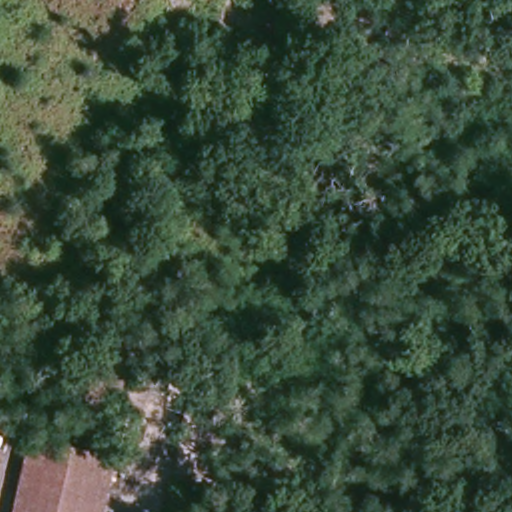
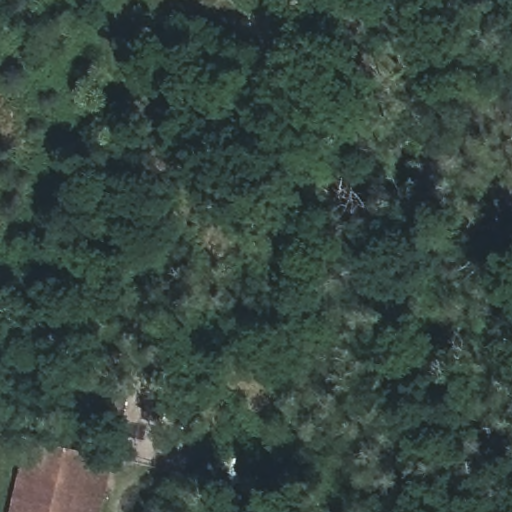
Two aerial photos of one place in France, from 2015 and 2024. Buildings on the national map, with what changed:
unchanged [(110,461),(99,512),(13,512),(29,441),(110,461)]

